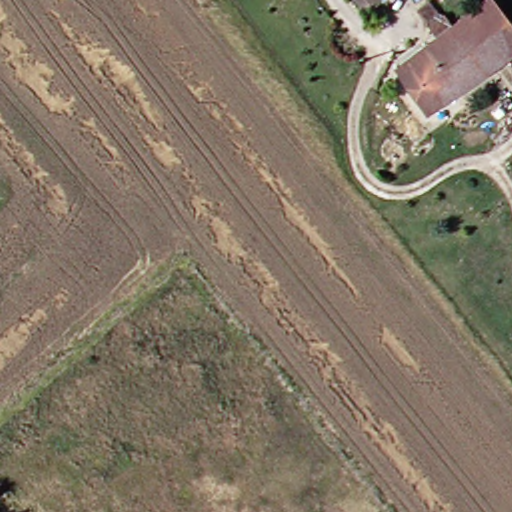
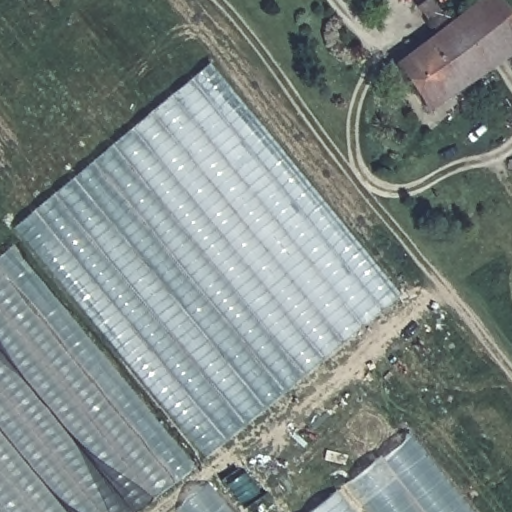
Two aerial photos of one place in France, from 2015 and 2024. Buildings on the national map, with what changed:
unchanged [(351,0),(377,0),(362,13),(351,0)]
unchanged [(416,9),(426,0),(437,0),(454,23),(482,0),(503,0),(512,11),(512,54),(437,111),(436,112),(401,67),(438,36),(416,9)]
new [(10,230),(203,66),(398,297),(201,461),(10,230)]
new [(13,248),(200,469),(143,512),(0,512),(0,258),(13,248)]
new [(405,437),(465,512),(362,512),(342,487),(405,437)]
new [(204,486),(226,512),(174,512),(204,486)]
new [(332,495),(346,512),(310,512),(332,495)]

